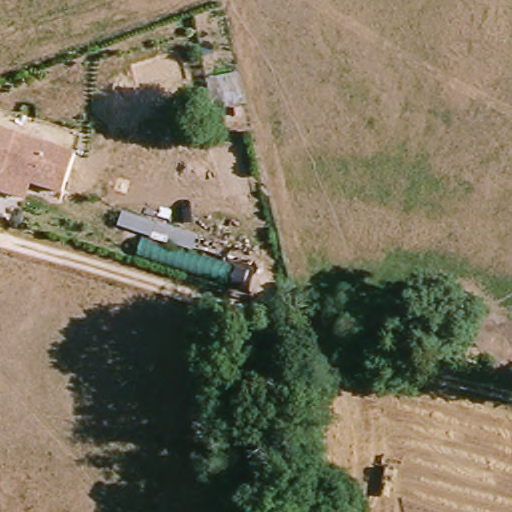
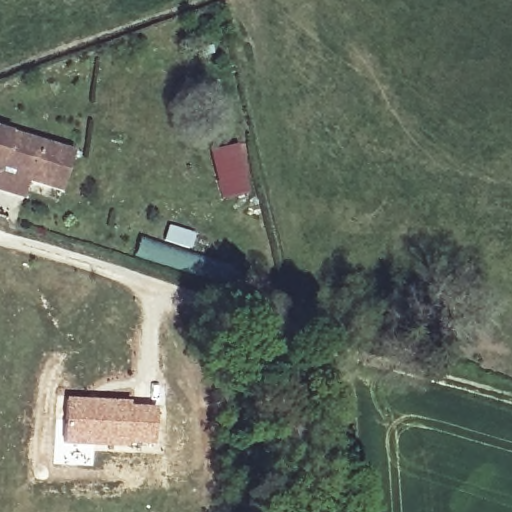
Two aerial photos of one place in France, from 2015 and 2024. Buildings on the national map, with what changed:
unchanged [(63,190),(30,180),(26,198),(0,191),(0,127),(75,152),(63,190)]
new [(210,150),(238,144),(250,193),(220,199),(210,150)]
new [(65,397),(131,402),(131,405),(155,406),(153,448),(112,447),(62,443),(65,397)]

